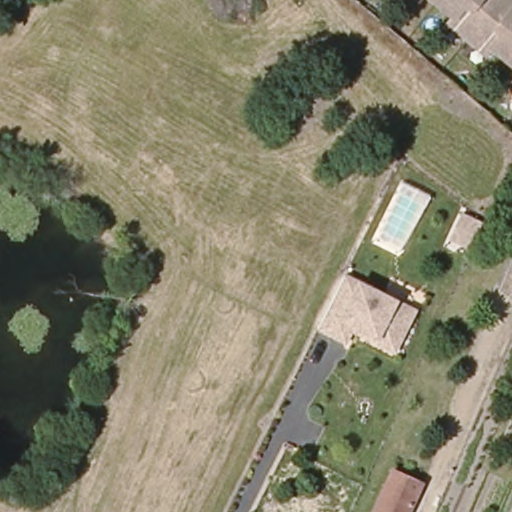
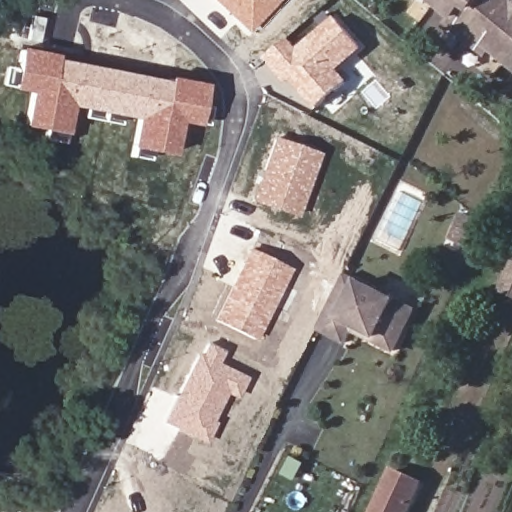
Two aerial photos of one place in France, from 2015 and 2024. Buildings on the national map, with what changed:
new [(249,32),(214,0),(279,0),(249,32)]
unchanged [(491,44),(485,50),(447,20),(453,13),(437,0),(512,0),(512,61),(491,44)]
new [(287,85),(266,60),(291,39),(298,49),(336,18),(362,51),(340,71),(350,83),(316,110),(292,81),(287,85)]
new [(167,77),(205,84),(198,124),(180,122),(172,156),(130,148),(136,120),(71,106),(66,134),(22,126),(29,92),(12,88),(20,48),(57,55),(56,60),(169,82),(167,77)]
new [(251,201),(274,136),(321,153),(299,218),(251,201)]
unchanged [(482,222),(472,247),(453,238),(464,213),(482,222)]
new [(215,320),(249,248),(292,269),(257,341),(215,320)]
unchanged [(502,292),(512,268),(512,296),(502,292)]
unchanged [(347,343),(346,342),(319,329),(345,276),(372,289),(415,310),(395,351),(363,336),(353,331),(347,343)]
new [(248,378),(237,399),(227,393),(213,421),(216,422),(206,443),(164,422),(197,353),(202,356),(208,342),(225,351),(220,363),(248,378)]
unchanged [(307,459),(296,453),(300,444),(305,446),(307,439),(316,443),(307,459)]
unchanged [(423,485),(410,512),(378,512),(397,473),(423,485)]

